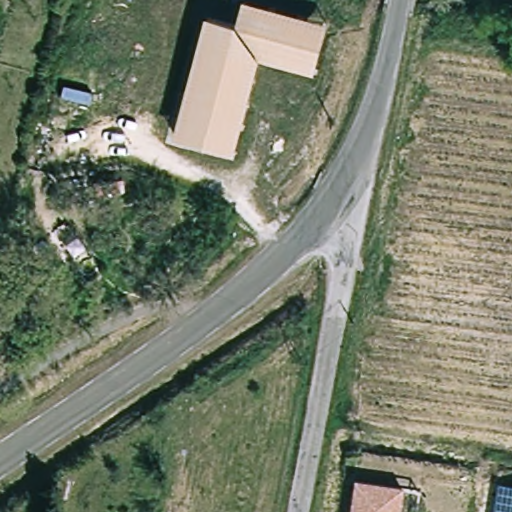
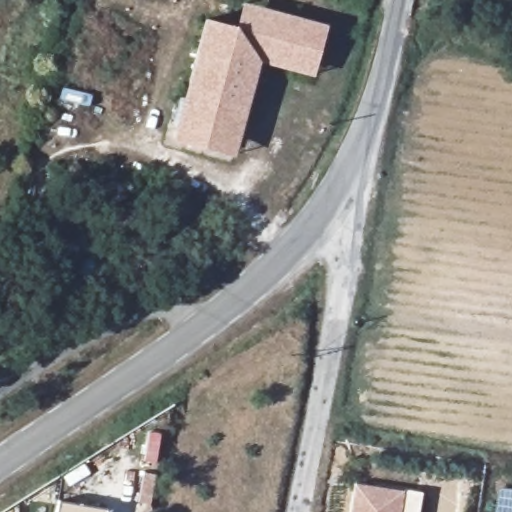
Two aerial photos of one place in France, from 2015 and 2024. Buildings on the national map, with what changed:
unchanged [(311,79),(260,66),(234,159),(173,141),(207,17),(238,26),(245,2),(329,26),(311,79)]
unchanged [(414,483),(411,512),(344,512),(348,475),(414,483)]
unchanged [(512,490),(512,512),(489,512),(493,487),(512,490)]
new [(58,502),(107,510),(107,512),(56,512),(58,502)]

